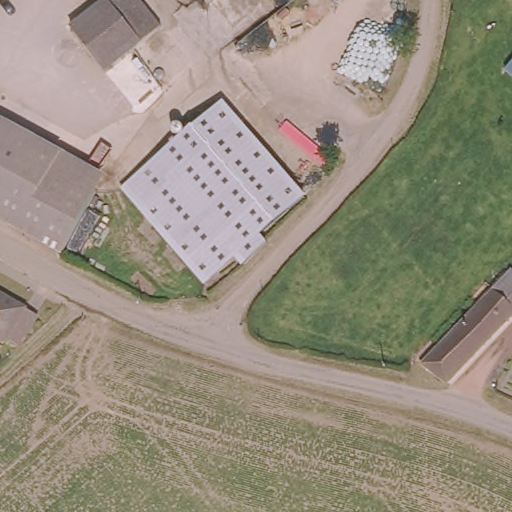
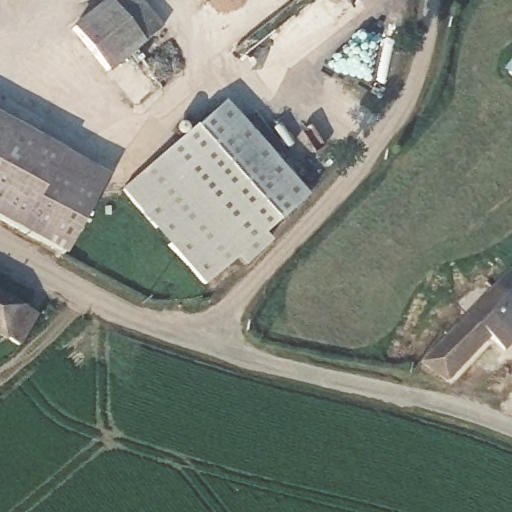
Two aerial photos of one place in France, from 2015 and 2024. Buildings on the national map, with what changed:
unchanged [(87,52),(70,32),(107,4),(105,0),(136,0),(140,5),(142,8),(87,52)]
unchanged [(140,5),(136,0),(146,0),(140,5)]
unchanged [(165,36),(109,80),(87,52),(142,8),(165,36)]
unchanged [(503,70),(512,60),(512,78),(503,70)]
unchanged [(226,269),(219,260),(197,279),(122,190),(212,115),(286,205),(243,240),(249,247),(226,269)]
unchanged [(9,171),(27,186),(0,226),(0,121),(32,141),(9,171)]
unchanged [(27,186),(9,171),(32,141),(63,160),(17,236),(0,226),(27,186)]
unchanged [(105,185),(60,261),(17,236),(63,160),(105,185)]
unchanged [(453,381),(428,364),(512,273),(512,320),(453,381)]
unchanged [(0,291),(35,310),(25,335),(22,342),(19,340),(0,332),(0,291)]

